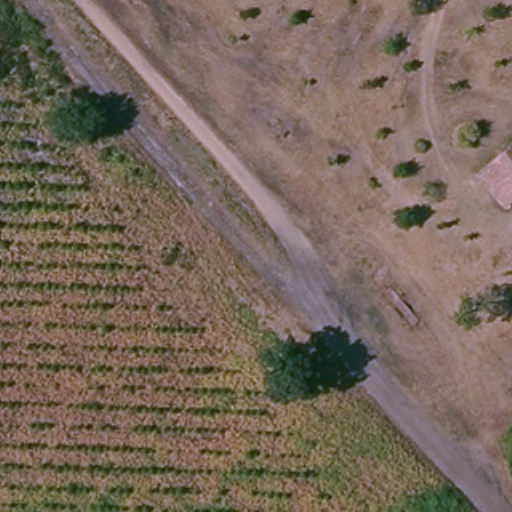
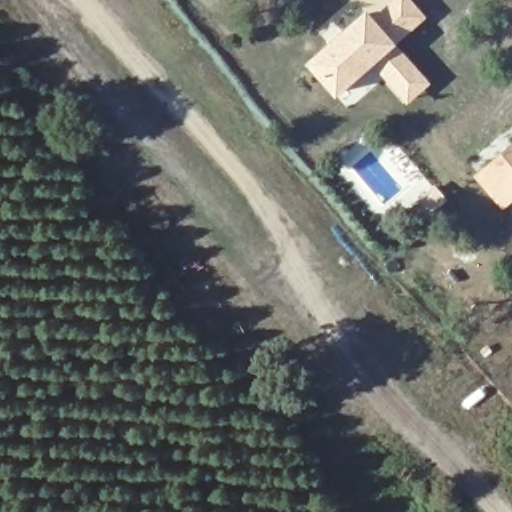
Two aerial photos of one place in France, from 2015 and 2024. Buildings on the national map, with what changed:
new [(390,0),(412,0),(427,16),(397,45),(372,15),(390,0)]
new [(365,8),(372,15),(397,45),(399,47),(388,57),(387,55),(334,97),(303,62),(365,8)]
new [(388,57),(399,47),(431,83),(406,105),(374,69),(388,57)]
unchanged [(507,205),(504,202),(480,175),(512,148),(512,201),(507,205)]

